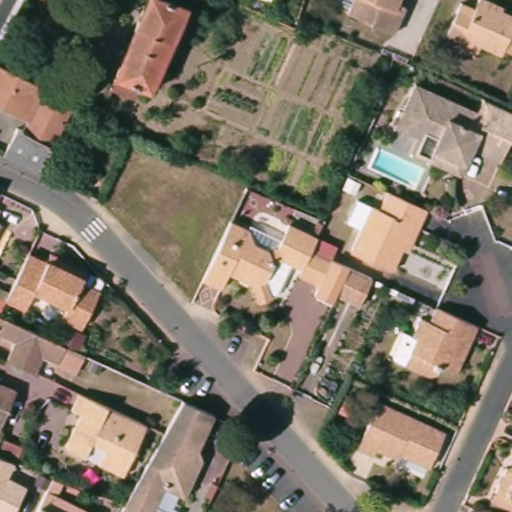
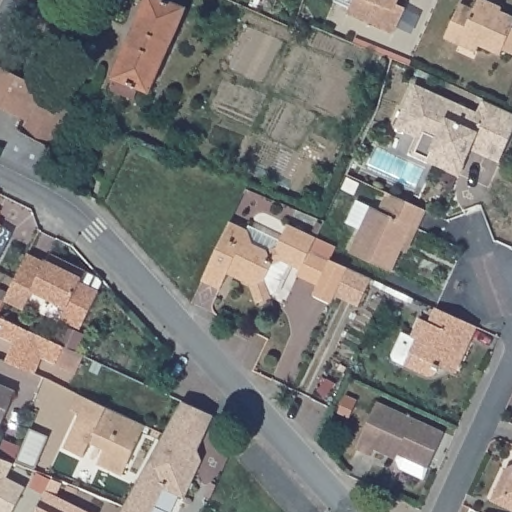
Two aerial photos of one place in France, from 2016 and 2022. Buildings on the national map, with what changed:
unchanged [(172,4),(183,9),(145,91),(134,87),(129,99),(106,89),(104,88),(133,21),(140,0),(169,0),(169,2),(172,4)]
unchanged [(403,6),(391,34),(346,13),(351,0),(396,0),(394,3),(403,6)]
unchanged [(439,36),(454,0),(471,8),(475,0),(487,0),(492,3),(491,8),(512,17),(512,18),(509,25),(512,27),(512,49),(510,54),(499,49),(496,54),(475,44),(472,51),(454,43),(439,36)]
unchanged [(39,86),(28,110),(24,119),(0,107),(0,67),(9,71),(39,86)]
unchanged [(69,101),(49,148),(17,133),(18,131),(24,119),(28,110),(39,86),(69,101)]
unchanged [(407,156),(414,141),(389,129),(409,88),(472,117),(478,104),(501,114),(512,119),(512,124),(493,165),(477,158),(464,152),(456,171),(453,178),(407,156)]
unchanged [(18,131),(17,133),(49,148),(36,173),(35,172),(0,155),(0,152),(11,128),(18,131)]
unchanged [(352,198),(376,208),(383,192),(422,209),(414,227),(408,224),(387,269),(347,250),(357,228),(342,222),(352,198)]
unchanged [(265,297),(266,299),(252,304),(246,286),(230,279),(220,274),(214,289),(196,281),(202,268),(207,257),(224,222),(241,230),(243,226),(274,241),(282,224),(311,239),(309,244),(305,253),(298,267),(296,271),(294,270),(284,265),(272,294),(265,297)]
unchanged [(352,308),(329,297),(325,304),(309,295),(313,287),(293,277),(292,277),(294,270),(296,271),(298,267),(305,253),(342,269),(364,280),(352,308)]
unchanged [(44,269),(49,259),(60,264),(84,276),(79,288),(97,295),(79,331),(59,323),(64,309),(33,294),(24,312),(6,303),(26,262),(44,270),(44,269)]
unchanged [(446,370),(438,367),(436,372),(433,374),(429,375),(425,374),(404,364),(394,359),(392,355),(402,333),(411,336),(418,318),(428,322),(434,309),(474,329),(468,343),(454,374),(446,370)]
unchanged [(24,327),(46,337),(54,341),(79,353),(84,355),(75,374),(43,358),(35,373),(33,372),(22,367),(21,367),(8,361),(15,343),(0,335),(0,315),(14,322),(24,327)]
unchanged [(0,424),(0,390),(13,396),(0,424)]
unchanged [(78,393),(94,401),(130,419),(144,426),(119,475),(95,463),(103,448),(89,441),(82,457),(62,447),(71,425),(78,413),(70,409),(78,393)]
unchanged [(437,432),(421,467),(393,453),(391,458),(371,449),(368,457),(352,449),(373,402),(437,432)]
unchanged [(197,454),(172,443),(178,429),(169,424),(183,404),(214,418),(197,454)]
unchanged [(119,505),(129,490),(136,479),(141,472),(146,464),(152,454),(161,438),(167,428),(169,424),(178,429),(172,443),(197,454),(204,458),(187,493),(166,484),(153,512),(115,512),(119,505)]
unchanged [(0,456),(14,464),(8,476),(26,486),(13,512),(0,512),(0,456)]
unchanged [(490,484),(500,463),(509,466),(512,460),(512,506),(486,494),(490,484)]
unchanged [(53,478),(64,484),(58,494),(91,512),(34,512),(53,478)]

